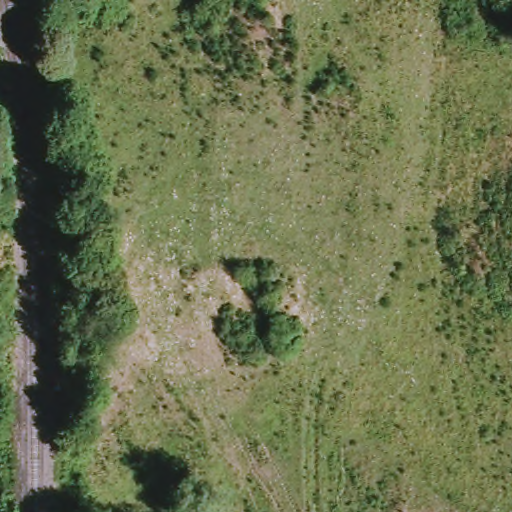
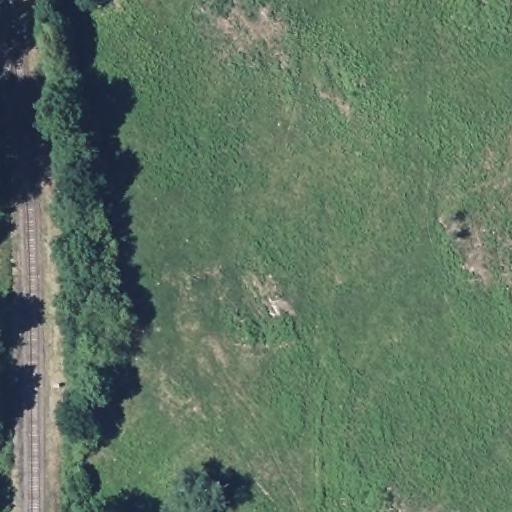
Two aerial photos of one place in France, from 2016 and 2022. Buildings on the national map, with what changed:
[]

